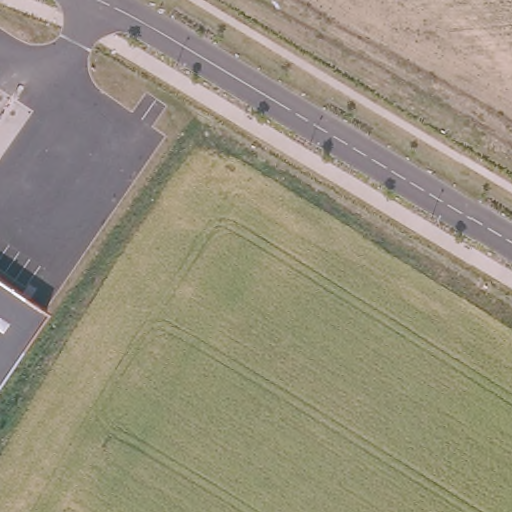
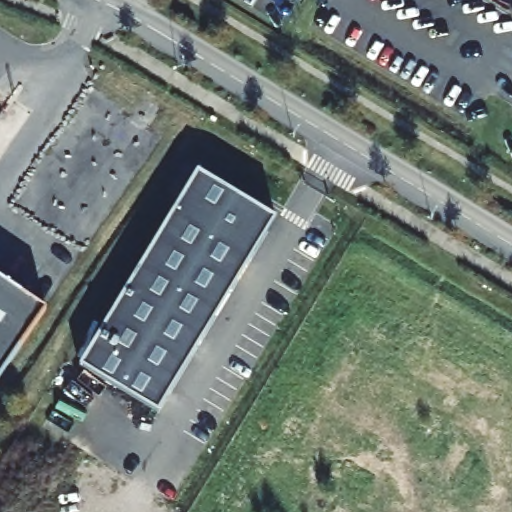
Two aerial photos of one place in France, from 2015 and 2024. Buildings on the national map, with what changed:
new [(278,213),(163,412),(83,367),(201,169),(278,213)]
unchanged [(0,379),(0,279),(46,311),(0,379)]

